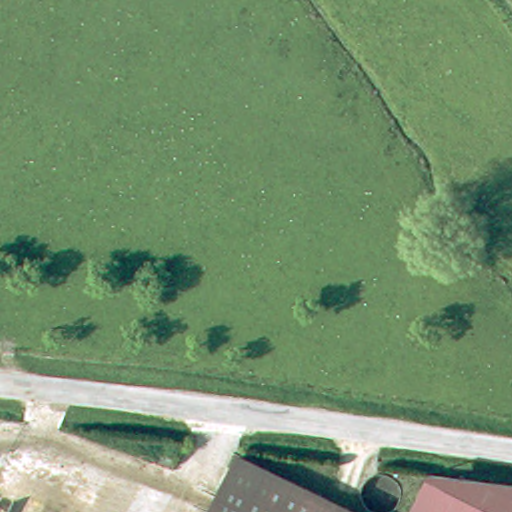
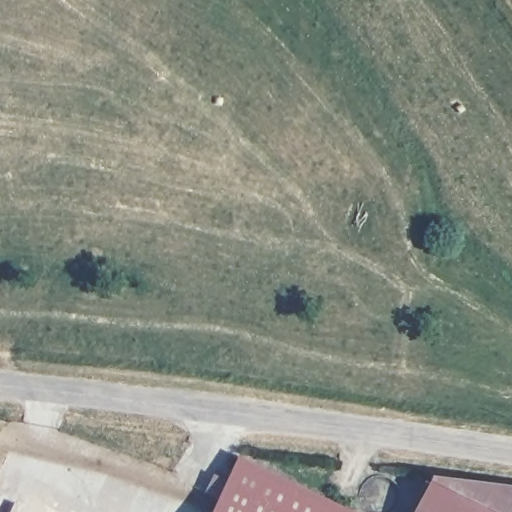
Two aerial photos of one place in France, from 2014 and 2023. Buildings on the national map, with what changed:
unchanged [(239,450),(363,512),(208,512),(239,450)]
unchanged [(430,468),(512,478),(512,512),(408,512),(430,468)]

